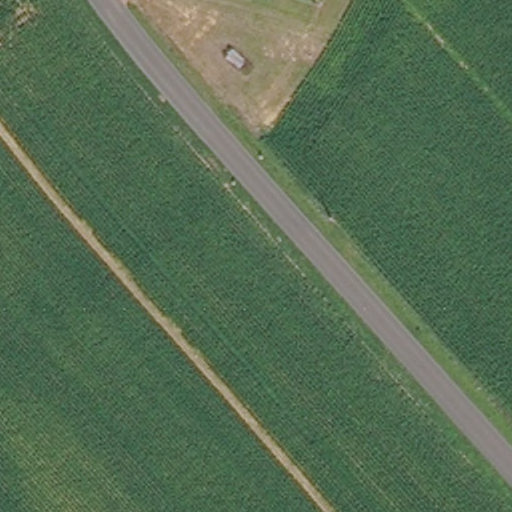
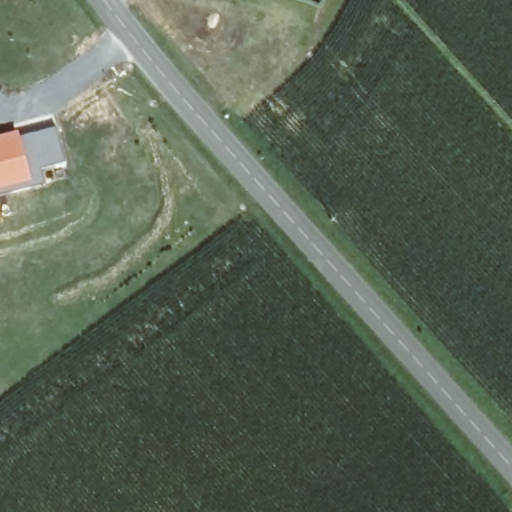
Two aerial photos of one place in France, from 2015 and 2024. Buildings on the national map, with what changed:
new [(19,130),(20,136),(55,126),(64,161),(40,167),(44,184),(0,194),(0,135),(19,130)]

